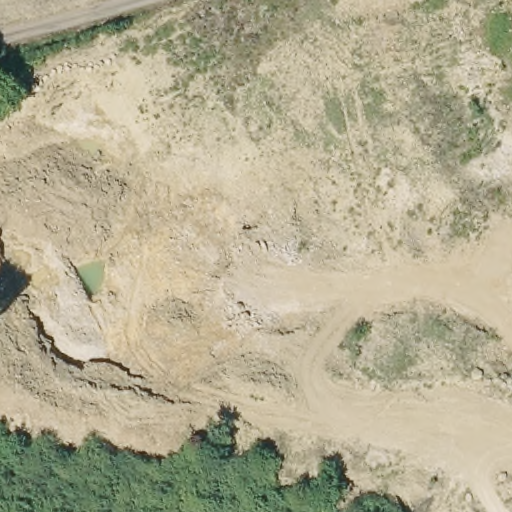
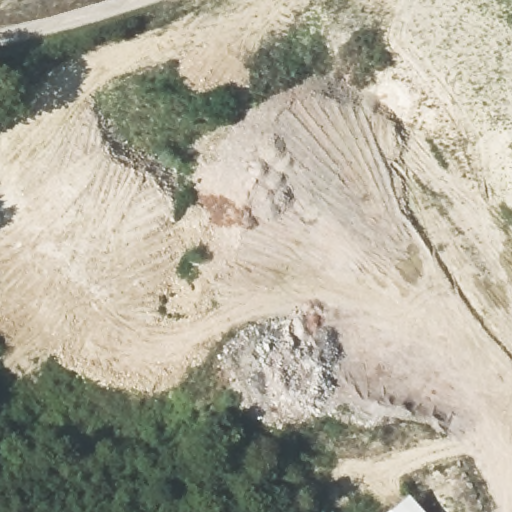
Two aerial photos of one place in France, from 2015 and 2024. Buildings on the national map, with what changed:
new [(424,512),(390,512),(409,495),(424,512)]

